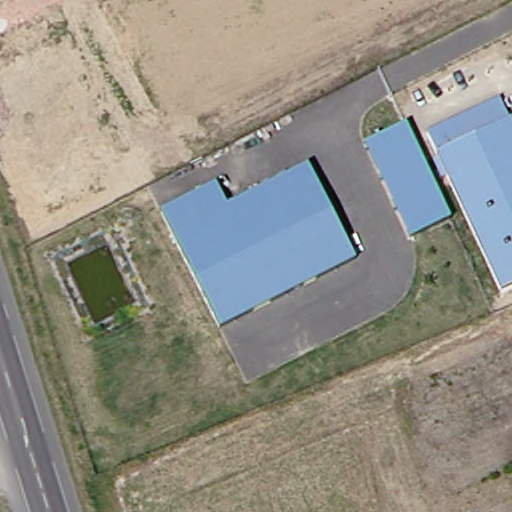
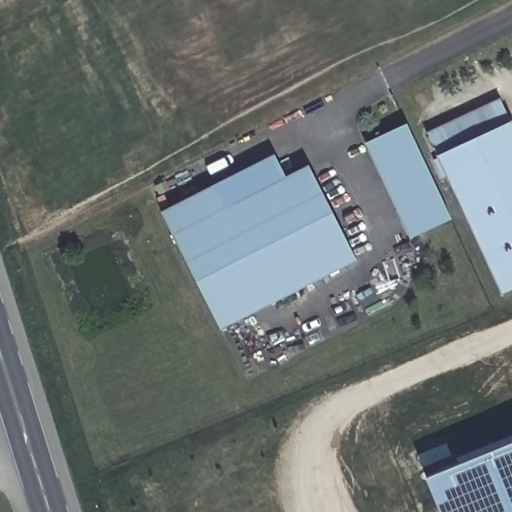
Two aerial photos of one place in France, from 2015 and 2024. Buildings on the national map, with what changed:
unchanged [(512,131),(512,287),(504,291),(429,132),(497,100),(512,131)]
unchanged [(403,126),(447,221),(406,240),(362,145),(403,126)]
unchanged [(311,166),(357,262),(220,327),(174,233),(228,206),(311,166)]
unchanged [(174,233),(163,212),(217,184),(228,206),(174,233)]
new [(512,432),(512,512),(437,512),(420,469),(512,432)]

